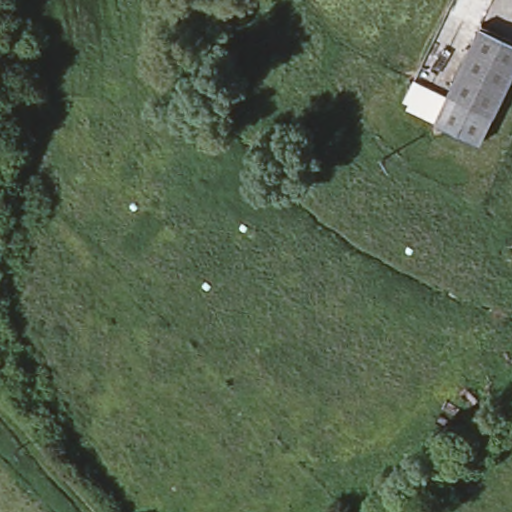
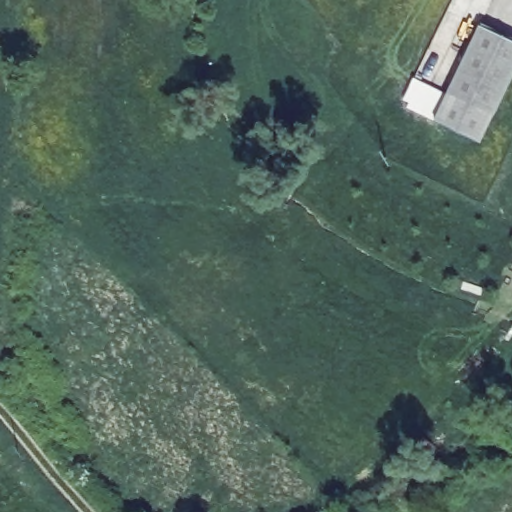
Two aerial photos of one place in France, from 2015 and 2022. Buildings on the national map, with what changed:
unchanged [(480,22),(512,38),(512,76),(481,140),(434,119),(480,22)]

